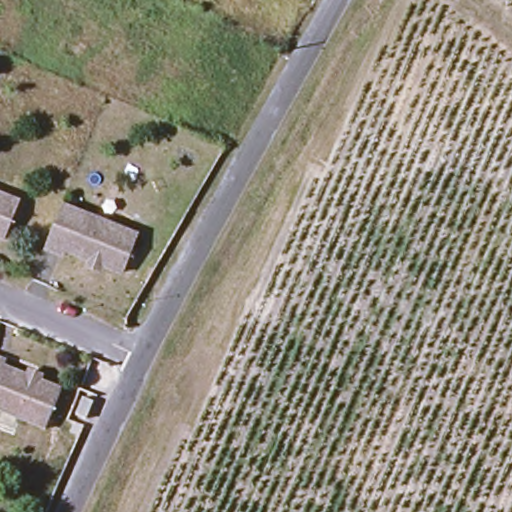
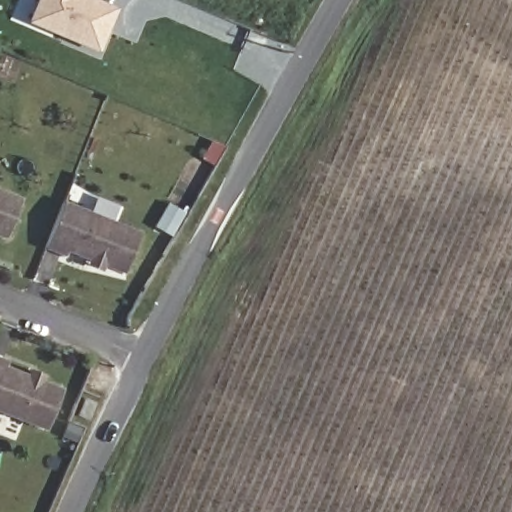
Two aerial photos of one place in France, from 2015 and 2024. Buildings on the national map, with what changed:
new [(101,0),(117,7),(99,52),(26,21),(35,0),(101,0)]
unchanged [(1,238),(0,238),(0,193),(16,199),(1,238)]
unchanged [(135,232),(119,271),(60,248),(59,252),(43,245),(59,202),(135,232)]
unchanged [(1,370),(25,379),(28,374),(39,378),(38,384),(59,392),(44,432),(0,415),(0,363),(3,364),(1,370)]
unchanged [(84,421),(74,417),(81,400),(91,404),(84,421)]

